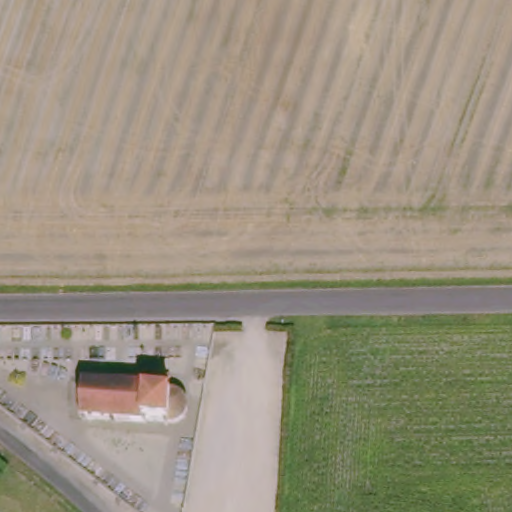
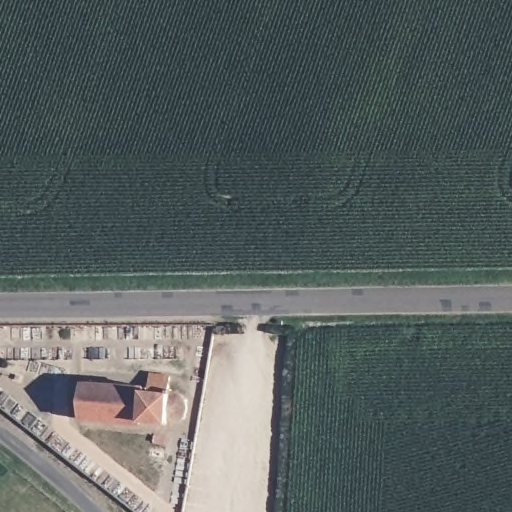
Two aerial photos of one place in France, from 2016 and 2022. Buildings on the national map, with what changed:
unchanged [(82,387),(82,383),(84,383),(84,381),(88,381),(88,383),(114,385),(115,382),(118,383),(118,385),(148,387),(150,374),(171,377),(170,389),(172,390),(172,392),(180,395),(185,399),(187,398),(188,402),(187,403),(188,409),(186,416),(187,416),(185,419),(184,418),(177,422),(169,423),(169,426),(166,425),(166,423),(148,422),(147,423),(116,421),(116,423),(112,422),(112,421),(87,418),(87,420),(83,420),(83,417),(80,417),(81,413),(83,413),(84,387),(82,387)]

